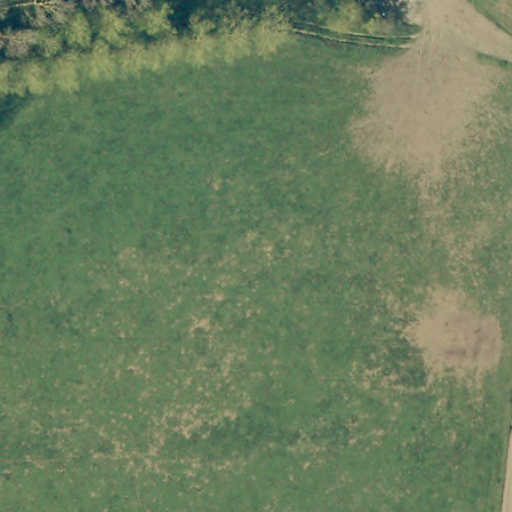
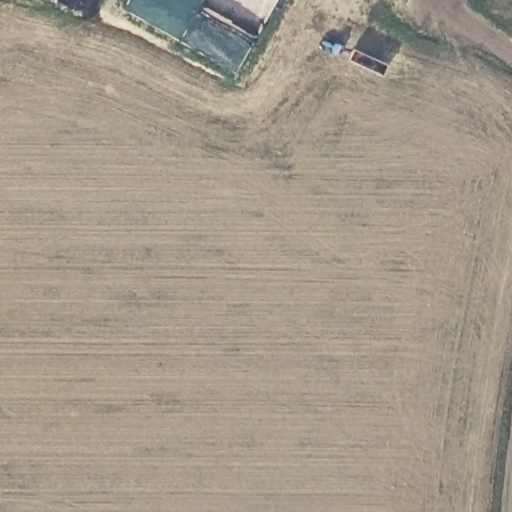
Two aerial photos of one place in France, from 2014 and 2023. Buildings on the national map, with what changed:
[]

